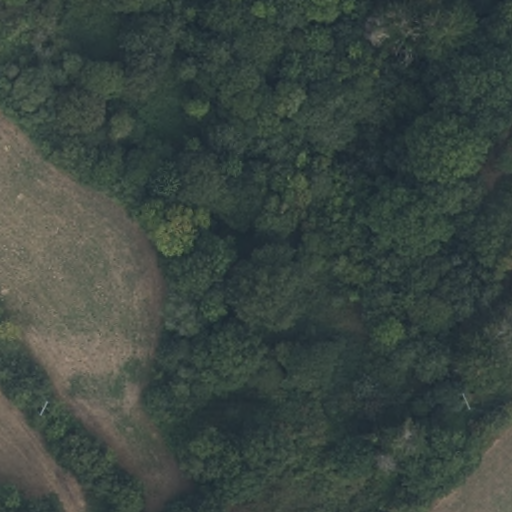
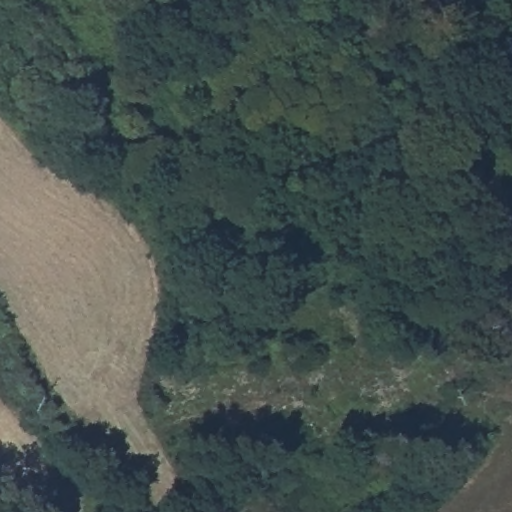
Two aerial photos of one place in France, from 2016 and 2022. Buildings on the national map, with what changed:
unchanged [(490,0),(482,15),(452,0),(490,0)]

